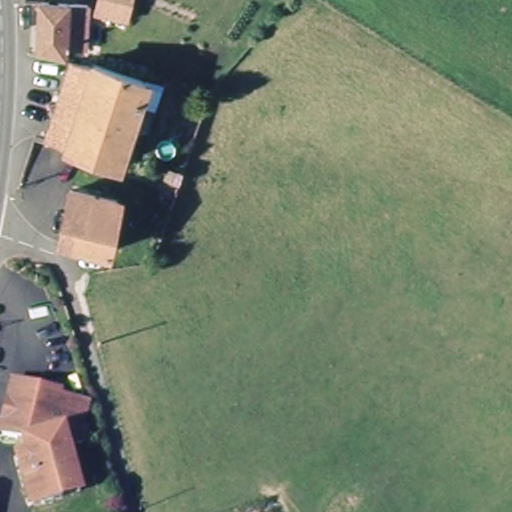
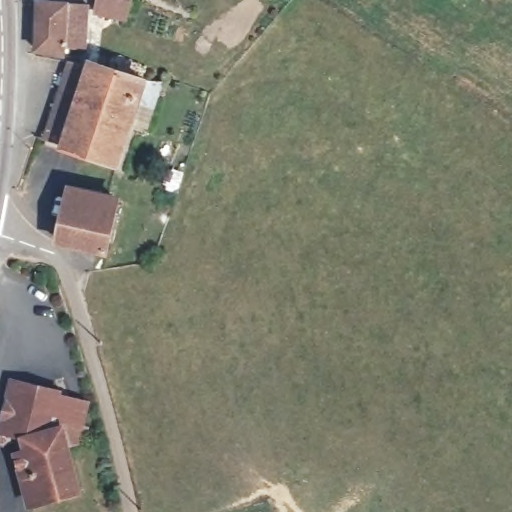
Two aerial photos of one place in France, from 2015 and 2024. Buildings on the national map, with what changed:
unchanged [(135,14),(106,10),(108,0),(137,0),(135,14)]
unchanged [(36,54),(38,7),(38,4),(79,4),(85,4),(86,5),(83,45),(64,45),(64,55),(36,54)]
unchanged [(120,163),(70,145),(96,65),(139,79),(145,81),(120,163)]
unchanged [(117,230),(110,230),(105,250),(63,242),(70,205),(73,191),(118,200),(114,215),(121,216),(117,230)]
unchanged [(65,499),(38,506),(25,456),(20,440),(10,436),(13,422),(9,421),(15,396),(18,397),(20,386),(30,390),(31,387),(68,396),(68,401),(94,408),(89,430),(94,432),(91,445),(75,449),(85,485),(88,493),(65,499)]

